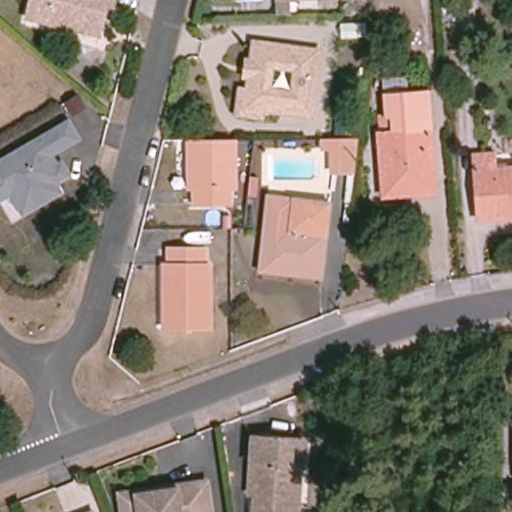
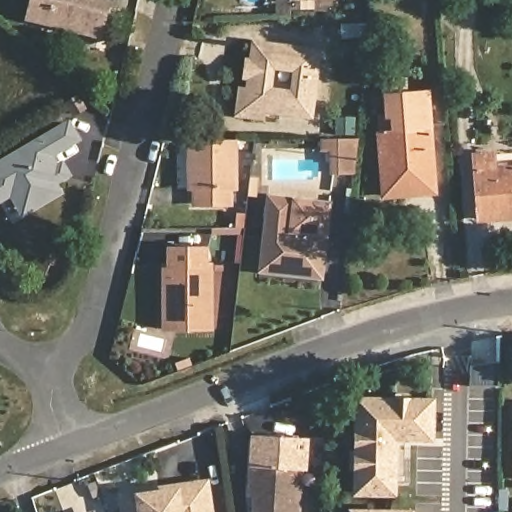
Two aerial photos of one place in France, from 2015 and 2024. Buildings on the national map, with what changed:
unchanged [(33,0),(115,0),(113,7),(100,3),(99,10),(105,12),(99,36),(80,31),(81,26),(49,18),(47,23),(28,18),(33,0)]
unchanged [(238,110),(241,85),(249,86),(250,74),(246,73),(248,57),(252,58),(255,39),(320,47),(311,112),(264,106),(263,113),(238,110)]
unchanged [(387,117),(386,97),(428,94),(434,185),(406,187),(406,196),(383,198),(379,134),(382,134),(381,117),(387,117)]
unchanged [(62,180),(57,183),(48,188),(54,198),(24,215),(14,212),(6,198),(0,202),(0,166),(63,129),(72,144),(44,161),(51,173),(57,170),(62,180)]
unchanged [(234,140),(235,189),(230,189),(230,205),(195,205),(195,189),(190,189),(190,141),(234,140)]
unchanged [(344,174),(322,174),(323,140),(347,141),(344,174)]
unchanged [(474,156),(494,154),(495,169),(512,168),(512,219),(479,221),(474,156)]
unchanged [(330,204),(323,270),(295,267),(294,276),(260,272),(267,212),(292,215),(294,200),(330,204)]
unchanged [(164,302),(165,266),(170,266),(171,250),(206,251),(206,267),(210,267),(208,330),(169,329),(163,329),(164,302)]
new [(498,387),(469,387),(470,366),(499,362),(498,387)]
new [(403,484),(392,484),(392,494),(355,493),(356,472),(356,452),(357,432),(357,401),(394,402),(410,402),(431,402),(430,439),(404,439),(403,475),(403,484)]
unchanged [(306,441),(305,468),(302,468),(300,512),(256,512),(257,495),(252,495),(254,439),(306,441)]
unchanged [(158,494),(174,492),(173,487),(206,483),(210,512),(124,512),(122,499),(158,494)]

